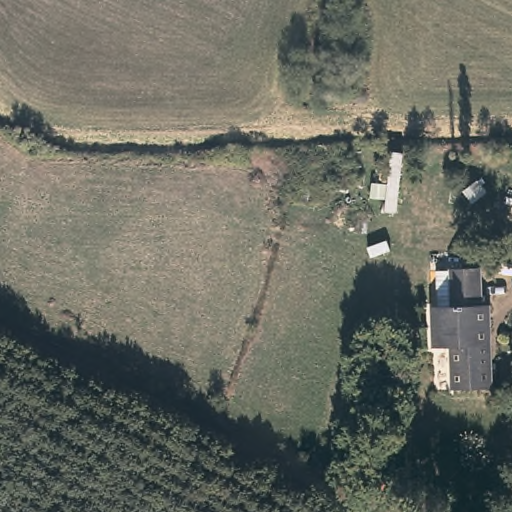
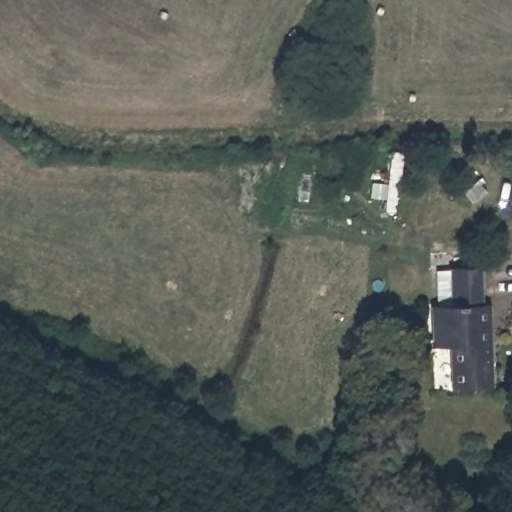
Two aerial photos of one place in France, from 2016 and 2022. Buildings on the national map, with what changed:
unchanged [(448,351),(430,348),(428,307),(451,305),(451,270),(483,268),(493,385),(449,389),(448,351)]

